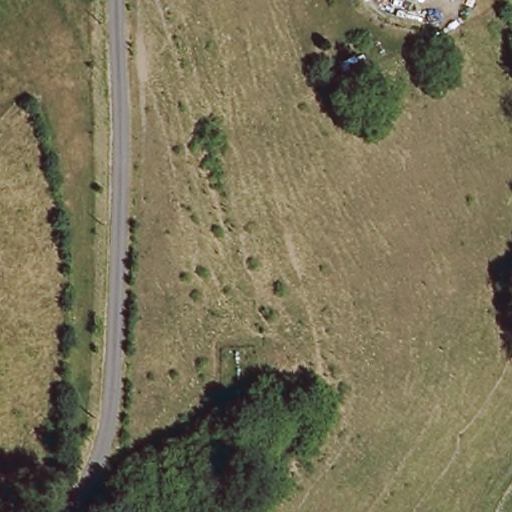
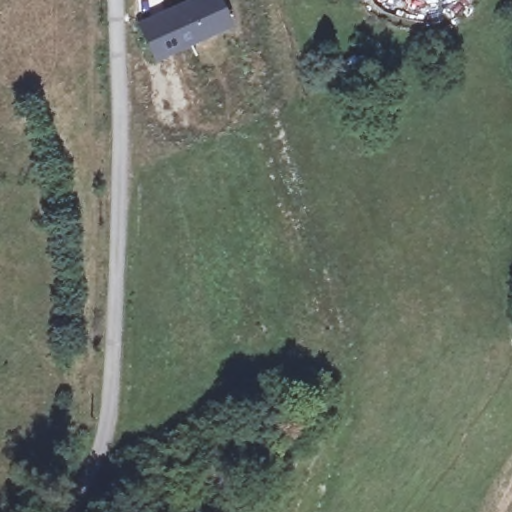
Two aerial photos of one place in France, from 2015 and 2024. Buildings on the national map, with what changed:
new [(219,0),(232,26),(155,63),(135,23),(182,0),(219,0)]

